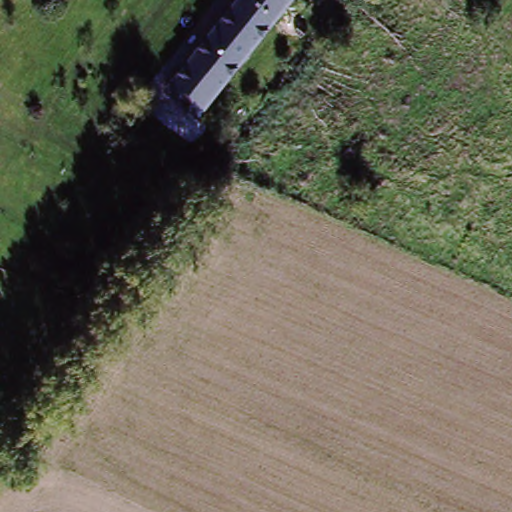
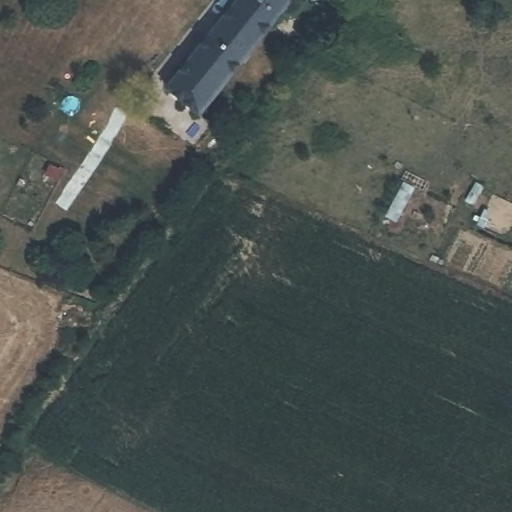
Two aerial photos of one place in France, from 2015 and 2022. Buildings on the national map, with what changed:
unchanged [(293,0),(202,121),(164,92),(236,0),(293,0)]

